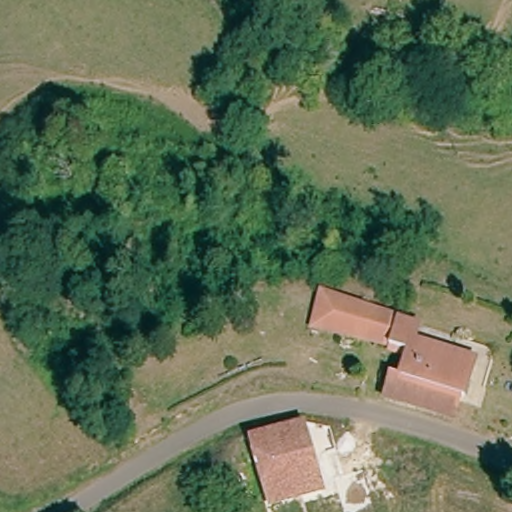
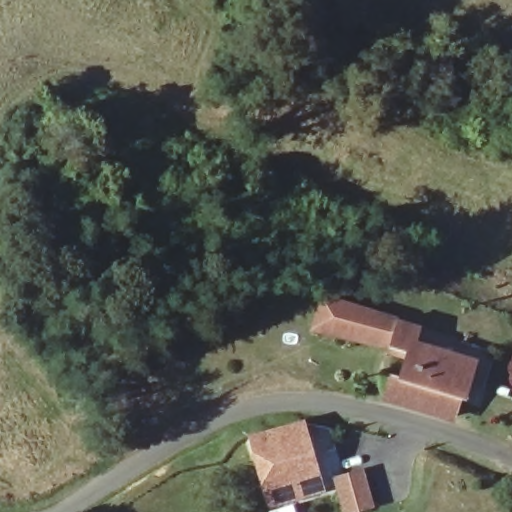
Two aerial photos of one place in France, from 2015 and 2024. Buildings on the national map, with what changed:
unchanged [(480,404),(457,397),(450,419),(381,396),(389,374),(397,376),(403,356),(310,325),(319,294),(415,325),(410,339),(492,366),(480,404)]
unchanged [(321,494),(306,498),(268,506),(254,440),(305,419),(321,494)]
new [(377,508),(362,512),(343,512),(333,478),(366,469),(377,508)]

